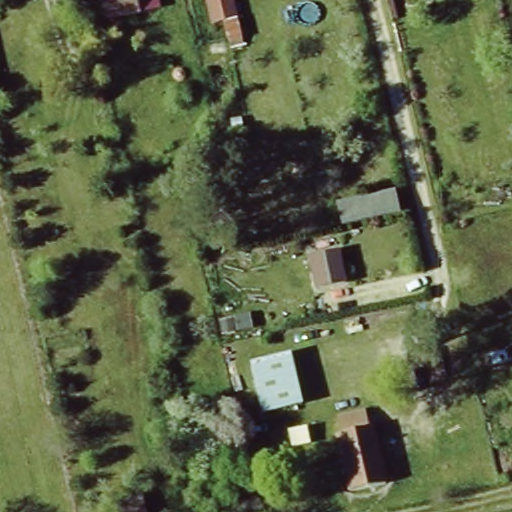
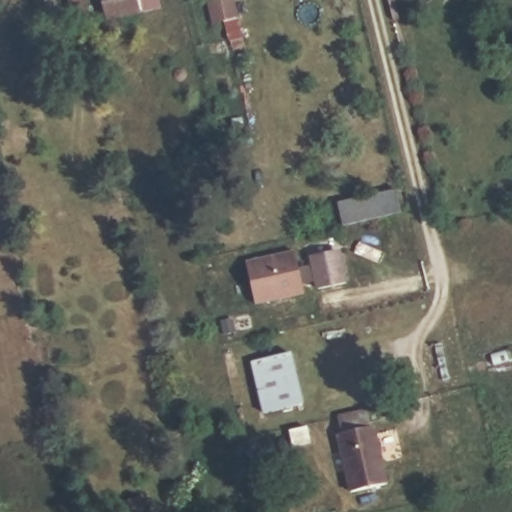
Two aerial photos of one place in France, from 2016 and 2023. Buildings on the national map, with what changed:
unchanged [(141,14),(107,22),(102,0),(138,0),(141,14)]
unchanged [(244,35),(230,42),(225,19),(208,22),(205,0),(237,0),(244,35)]
unchanged [(342,217),(341,193),(400,179),(403,209),(342,217)]
new [(303,285),(305,294),(255,305),(246,261),(293,251),(298,268),(312,264),(317,283),(303,285)]
unchanged [(340,255),(346,284),(318,290),(312,261),(340,255)]
unchanged [(243,325),(246,337),(240,339),(237,327),(243,325)]
unchanged [(226,332),(228,341),(222,342),(220,333),(226,332)]
unchanged [(294,357),(307,410),(262,415),(251,367),(294,357)]
unchanged [(367,408),(386,487),(347,495),(330,415),(367,408)]

